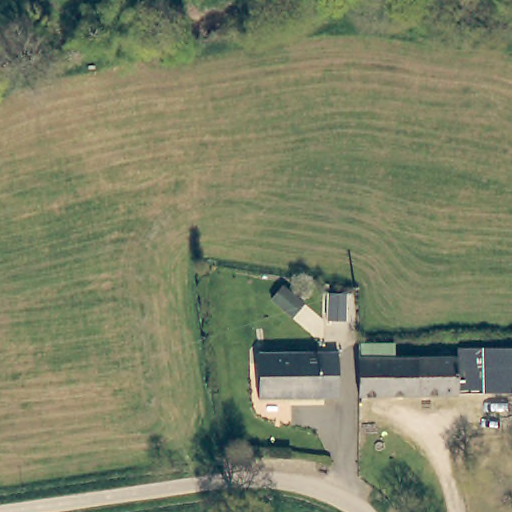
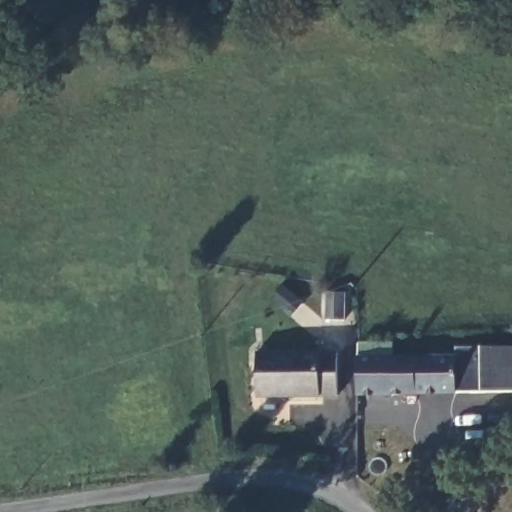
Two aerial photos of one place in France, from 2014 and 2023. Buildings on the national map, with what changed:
unchanged [(358,342),(390,342),(390,356),(390,395),(356,395),(358,359),(358,342)]
unchanged [(336,396),(258,392),(258,363),(258,349),(336,350),(336,357),(336,396)]
unchanged [(490,356),(512,355),(512,394),(490,394),(390,395),(390,356),(490,356)]

